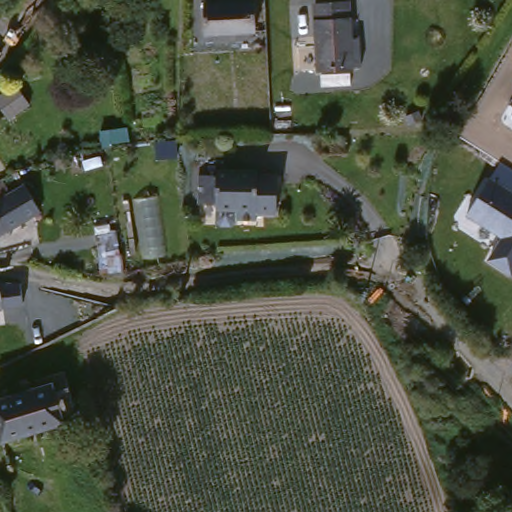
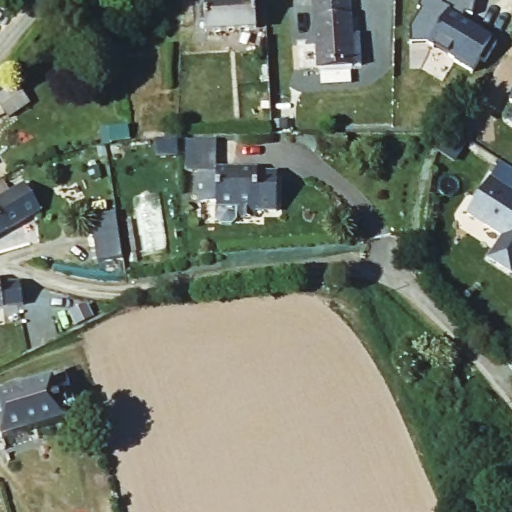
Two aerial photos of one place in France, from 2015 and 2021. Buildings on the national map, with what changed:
unchanged [(262,33),(212,37),(210,0),(260,0),(262,33)]
new [(408,28),(420,11),(418,10),(420,0),(475,0),(472,15),(465,13),(461,21),(493,40),(473,74),(431,46),(428,44),(409,44),(408,28)]
unchanged [(319,4),(356,2),(355,61),(318,63),(319,4)]
unchanged [(27,82),(7,98),(0,90),(0,73),(11,63),(27,82)]
unchanged [(512,98),(512,106),(508,103),(512,98)]
unchanged [(466,215),(501,161),(512,168),(512,271),(510,274),(487,260),(502,237),(466,215)]
unchanged [(242,167),(280,167),(280,210),(257,210),(257,219),(230,219),(230,210),(228,210),(228,224),(226,226),(216,226),(214,224),(214,210),(213,210),(213,204),(199,204),(194,204),(194,203),(194,176),(214,176),(214,167),(242,167)]
unchanged [(0,237),(0,191),(9,186),(28,220),(0,237)]
new [(92,231),(96,230),(94,216),(116,213),(123,259),(97,262),(92,231)]
unchanged [(25,300),(0,305),(0,278),(11,276),(20,278),(25,300)]
unchanged [(31,335),(21,342),(6,324),(15,317),(31,335)]
unchanged [(47,378),(51,377),(62,412),(6,430),(0,410),(0,395),(47,378)]

